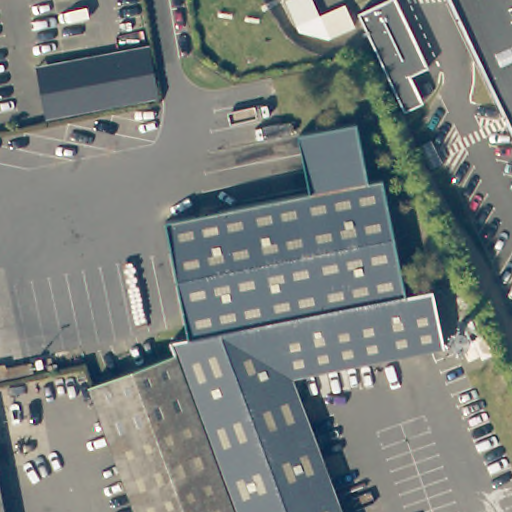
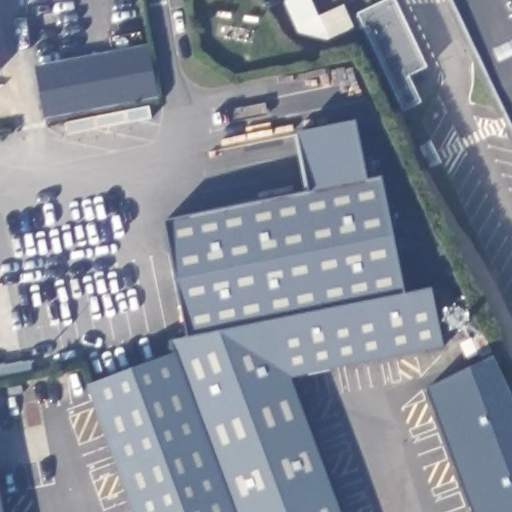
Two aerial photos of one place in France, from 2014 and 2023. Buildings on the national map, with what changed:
unchanged [(395,0),(428,68),(410,77),(423,103),(405,113),(358,15),(389,0),(395,0)]
unchanged [(512,0),(512,128),(451,0),(512,0)]
unchanged [(35,67),(149,44),(160,99),(47,119),(35,67)]
unchanged [(287,137),(346,126),(358,185),(299,197),(287,137)]
unchanged [(166,360),(164,356),(161,348),(178,343),(155,225),(168,222),(299,197),(358,185),(371,182),(387,257),(396,298),(422,294),(423,296),(423,297),(432,349),(290,376),(291,377),(342,512),(223,512),(180,397),(175,395),(170,360),(166,360)]
new [(512,394),(512,512),(472,512),(426,389),(494,357),(512,394)]
unchanged [(170,360),(175,395),(180,397),(223,512),(128,512),(82,390),(166,360),(170,360)]
unchanged [(31,373),(0,380),(0,370),(30,365),(31,373)]
unchanged [(4,512),(0,512),(0,493),(4,512)]

